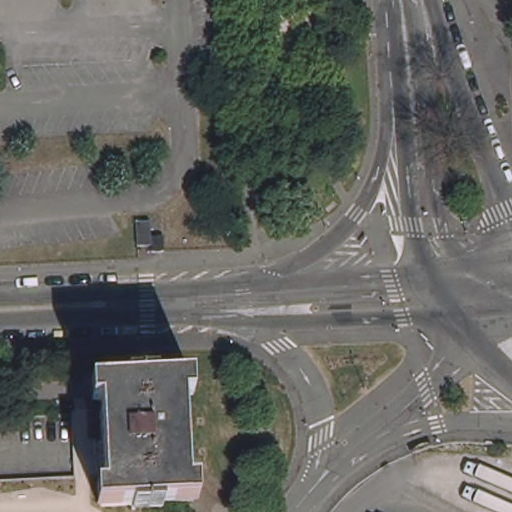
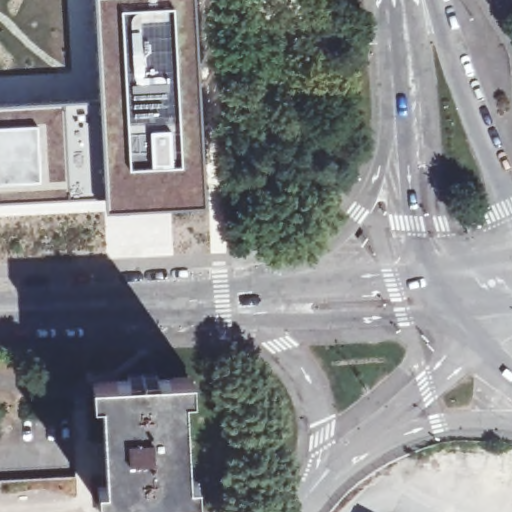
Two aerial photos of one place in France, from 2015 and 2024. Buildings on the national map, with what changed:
demolished [(0,14),(0,0),(32,0),(32,13),(0,14)]
new [(96,0),(194,0),(204,205),(107,210),(106,194),(0,201),(0,106),(101,101),(96,0)]
demolished [(90,9),(90,0),(137,0),(137,6),(90,9)]
unchanged [(488,39),(481,41),(475,24),(482,21),(488,39)]
demolished [(137,224),(152,222),(152,237),(165,237),(166,253),(152,253),(152,247),(139,248),(137,224)]
unchanged [(108,485),(103,417),(102,401),(99,401),(97,382),(128,380),(127,374),(157,373),(159,379),(189,377),(190,395),(186,396),(191,481),(195,480),(196,499),(166,501),(166,506),(151,506),(99,504),(96,486),(108,485)]
unchanged [(74,418),(103,417),(108,485),(96,486),(99,504),(151,506),(151,512),(0,512),(0,479),(76,476),(74,418)]

